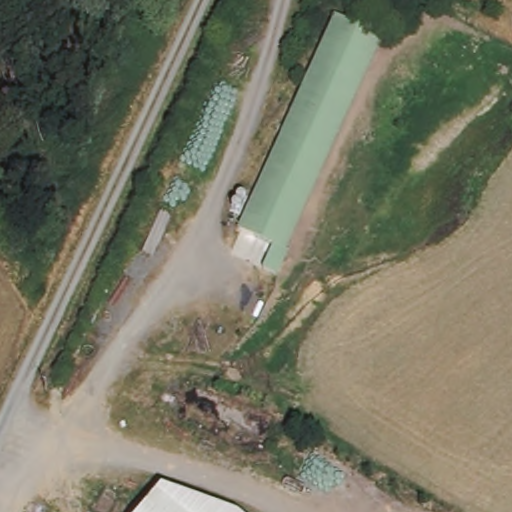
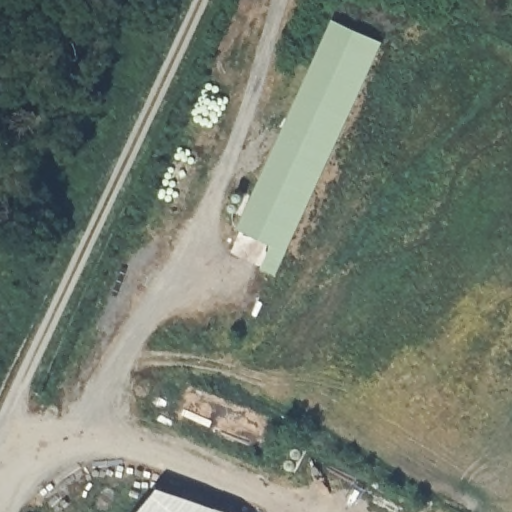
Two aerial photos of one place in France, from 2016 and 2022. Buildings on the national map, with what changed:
unchanged [(380,39),(282,250),(286,252),(278,270),(264,263),(272,245),(240,230),(337,20),(380,39)]
unchanged [(232,512),(144,512),(163,489),(232,512)]

